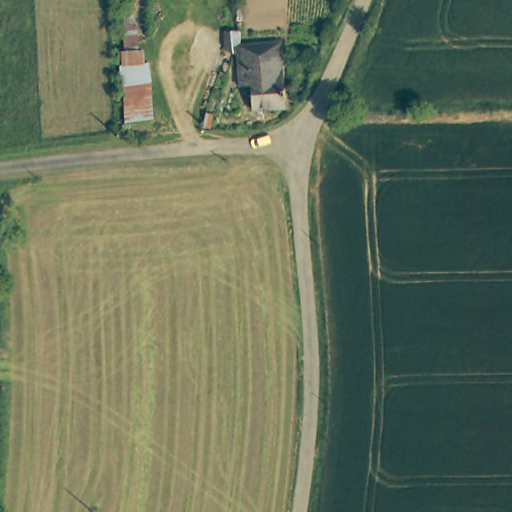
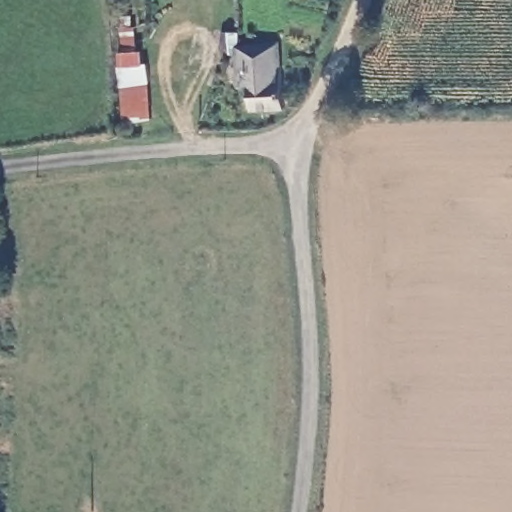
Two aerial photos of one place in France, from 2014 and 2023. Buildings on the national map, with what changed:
unchanged [(281,109),(247,110),(247,81),(247,67),(239,67),(238,44),(279,44),(279,67),(282,67),(281,109)]
unchanged [(150,66),(160,120),(128,126),(120,71),(150,66)]

